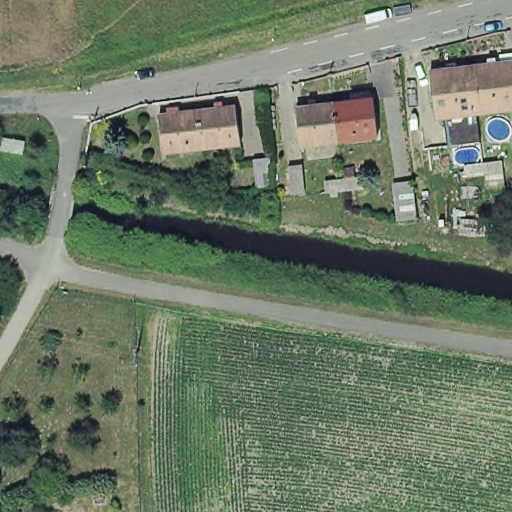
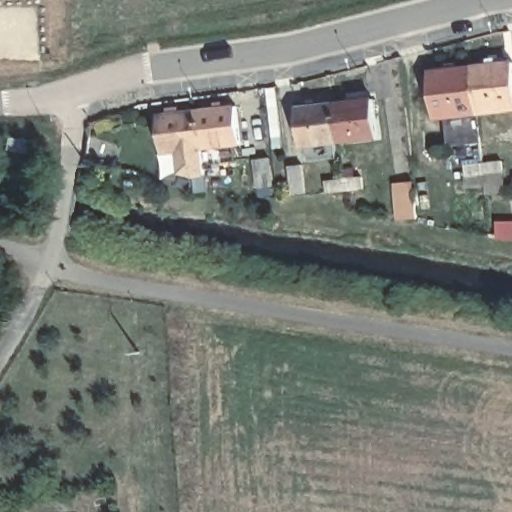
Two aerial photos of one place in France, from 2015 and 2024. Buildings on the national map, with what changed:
unchanged [(489,65),(488,57),(497,56),(497,63),(512,61),(512,106),(477,111),(472,67),(489,65)]
unchanged [(477,111),(435,116),(432,73),(447,70),(447,64),(454,62),(455,70),(472,67),(477,111)]
unchanged [(352,104),(351,97),(359,96),(360,103),(372,102),(375,139),(337,143),(333,105),(352,104)]
unchanged [(337,143),(298,147),(294,110),(308,107),(308,102),(314,101),(315,107),(333,105),(337,143)]
unchanged [(206,150),(197,150),(165,155),(165,149),(162,117),(177,116),(176,109),(184,107),(185,115),(200,112),(202,112),(217,110),(217,104),(227,102),(228,109),(240,107),(243,145),(206,150)]
unchanged [(450,156),(448,142),(475,138),(477,152),(450,156)]
unchanged [(467,160),(483,158),(502,155),(503,167),(485,170),(467,172),(467,160)]
unchanged [(255,189),(252,161),(267,159),(270,187),(255,189)]
unchanged [(288,196),(285,167),(300,165),(303,194),(288,196)]
unchanged [(185,181),(202,179),(203,179),(205,179),(222,176),(223,188),(205,191),(187,193),(185,181)]
unchanged [(393,187),(392,179),(410,176),(412,185),(415,214),(396,216),(392,187),(393,187)]
unchanged [(323,180),(340,179),(359,177),(361,190),(342,191),(325,192),(323,180)]

